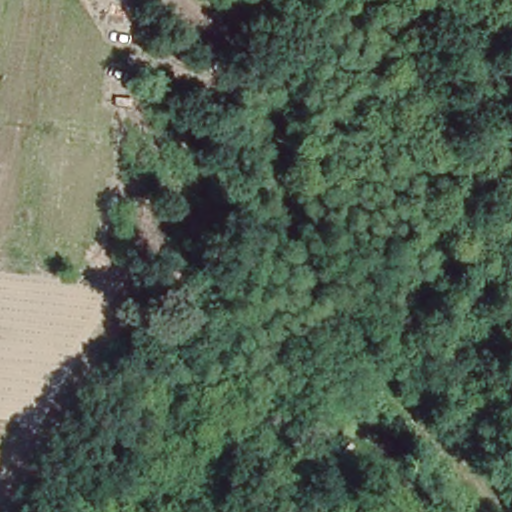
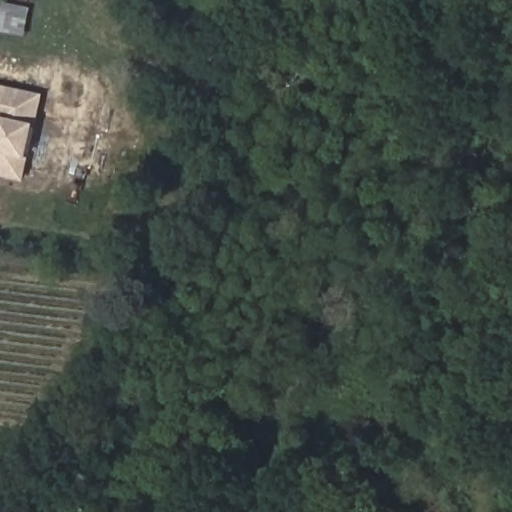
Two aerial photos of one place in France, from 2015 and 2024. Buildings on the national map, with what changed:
new [(0,177),(0,86),(44,95),(38,127),(31,161),(26,182),(0,177)]

